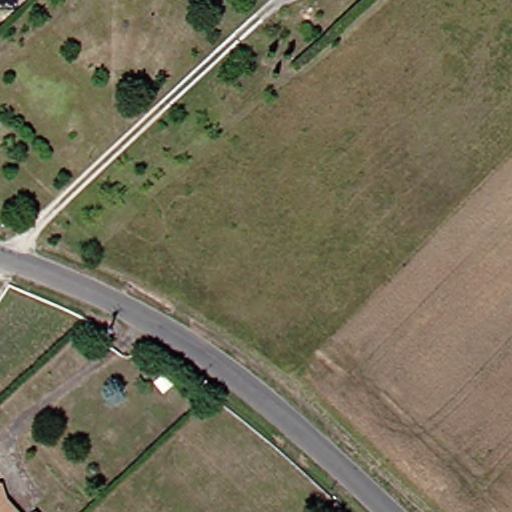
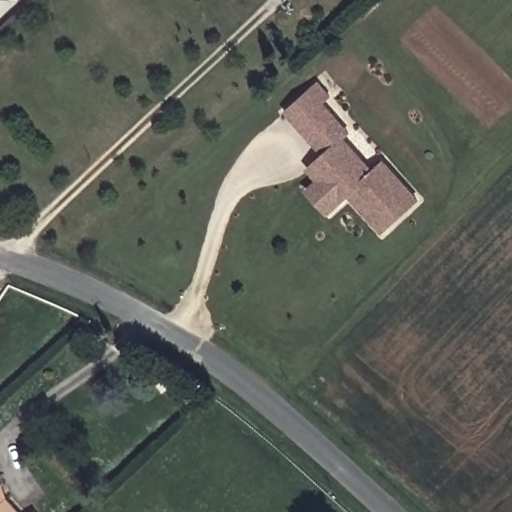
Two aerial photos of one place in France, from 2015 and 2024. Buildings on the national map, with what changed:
new [(348,197),(328,216),(306,191),(320,181),(309,168),(323,155),(286,113),(320,83),(332,98),(325,104),(352,133),(346,139),(374,170),(385,160),(420,198),(381,233),(348,197)]

